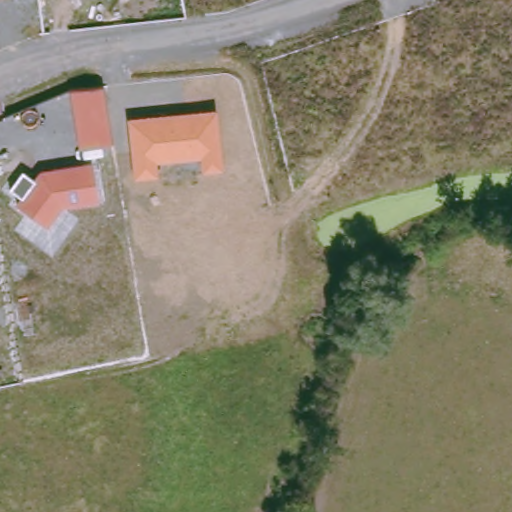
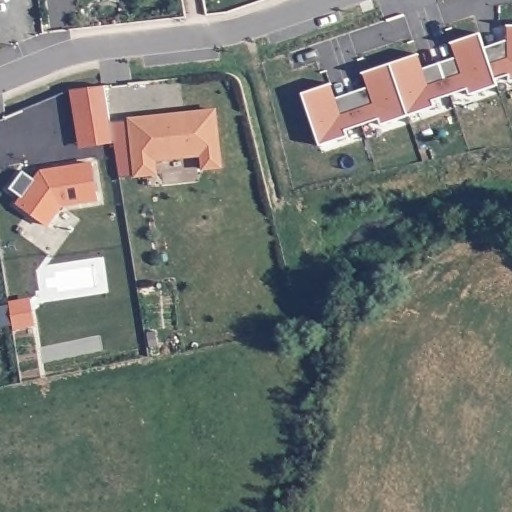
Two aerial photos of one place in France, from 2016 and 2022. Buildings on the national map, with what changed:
new [(428,86),(434,84),(431,77),(455,70),(457,76),(462,75),(451,41),(479,32),(488,58),(500,54),(502,59),(508,57),(507,24),(512,24),(512,83),(509,84),(509,78),(496,82),(498,88),(470,97),(468,92),(434,103),(436,109),(382,127),(380,122),(345,133),(347,139),(319,148),(301,95),(330,86),(340,116),(345,114),(343,109),(367,101),(368,106),(374,104),(363,72),(417,55),(428,86)]
new [(508,57),(502,59),(500,54),(488,58),(485,47),(507,40),(508,57)]
new [(462,75),(457,76),(455,70),(431,77),(434,84),(428,86),(422,69),(456,57),(462,75)]
unchanged [(103,87),(112,142),(80,147),(71,94),(103,87)]
new [(374,104),(368,106),(367,101),(343,109),(345,114),(340,116),(334,99),(368,87),(374,104)]
unchanged [(129,117),(217,109),(222,167),(200,170),(199,156),(155,161),(157,175),(135,175),(129,117)]
unchanged [(15,204),(22,196),(10,187),(22,171),(34,179),(40,167),(92,161),(99,203),(62,207),(49,227),(15,204)]
new [(35,325),(15,328),(12,306),(31,302),(35,325)]

